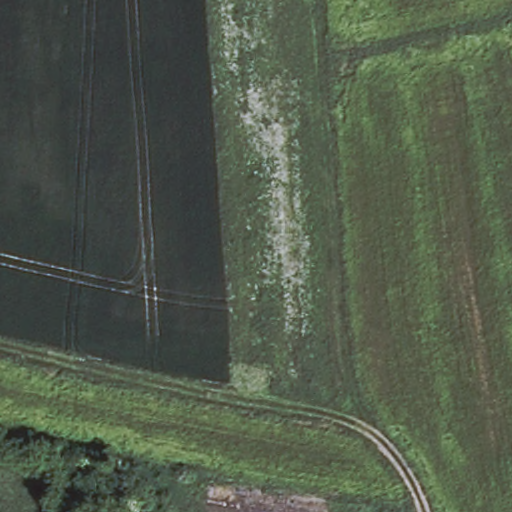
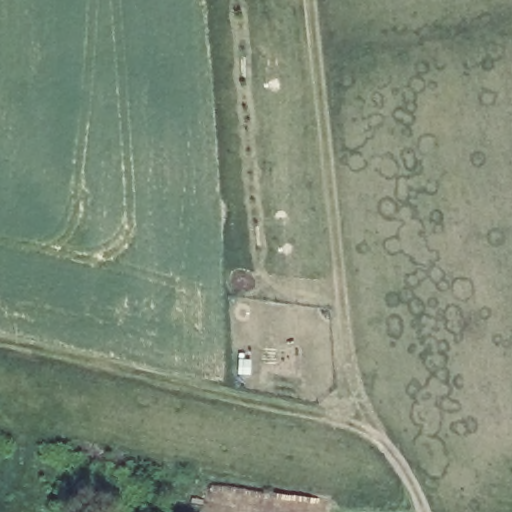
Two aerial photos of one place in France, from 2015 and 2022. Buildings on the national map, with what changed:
[]

